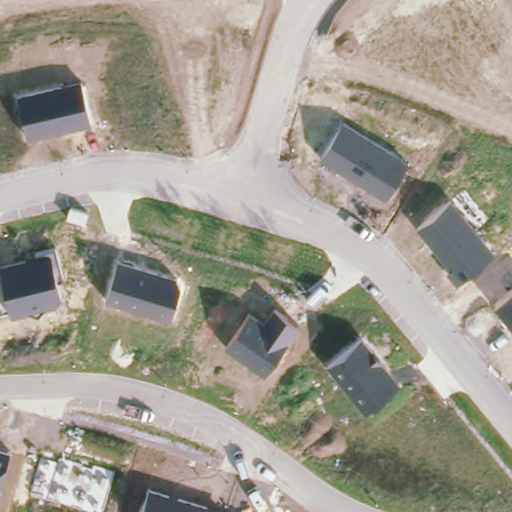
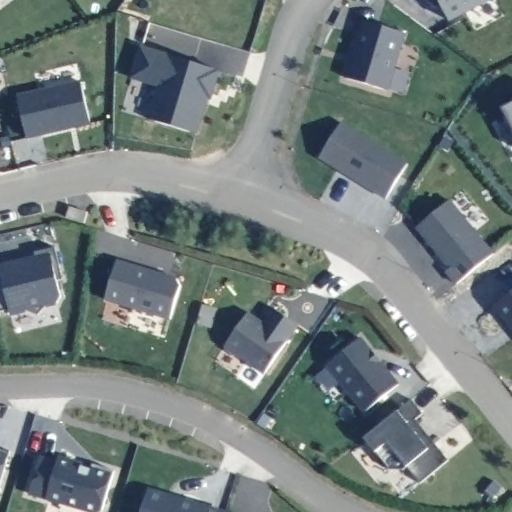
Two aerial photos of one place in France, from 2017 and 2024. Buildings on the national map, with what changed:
new [(475,0),(444,17),(434,0),(475,0)]
new [(365,21),(406,32),(389,90),(347,78),(365,21)]
new [(157,88),(130,80),(140,46),(221,73),(203,136),(148,120),(157,88)]
unchanged [(82,79),(91,124),(27,140),(18,94),(82,79)]
new [(502,108),(512,103),(512,127),(502,108)]
unchanged [(408,164),(386,199),(320,159),(342,122),(408,164)]
unchanged [(457,284),(447,272),(449,269),(418,228),(451,200),(495,254),(457,284)]
unchanged [(1,272),(1,265),(38,256),(37,252),(56,247),(63,278),(57,279),(62,296),(57,305),(44,306),(39,313),(30,310),(12,314),(11,310),(0,312),(0,272),(1,272)]
unchanged [(177,277),(181,285),(171,320),(105,301),(119,260),(177,277)]
unchanged [(512,294),(512,329),(495,308),(512,294)]
unchanged [(264,322),(274,308),(300,327),(265,375),(225,347),(249,313),(264,322)]
unchanged [(366,414),(328,366),(363,338),(400,384),(366,414)]
new [(412,398),(424,413),(416,419),(449,460),(421,483),(408,467),(405,470),(391,469),(364,437),(412,398)]
unchanged [(10,451),(0,486),(0,448),(10,451)]
unchanged [(58,459),(59,454),(84,459),(83,462),(92,464),(93,459),(115,466),(105,505),(98,509),(28,491),(39,453),(58,459)]
unchanged [(225,511),(225,512),(141,512),(149,488),(225,511)]

